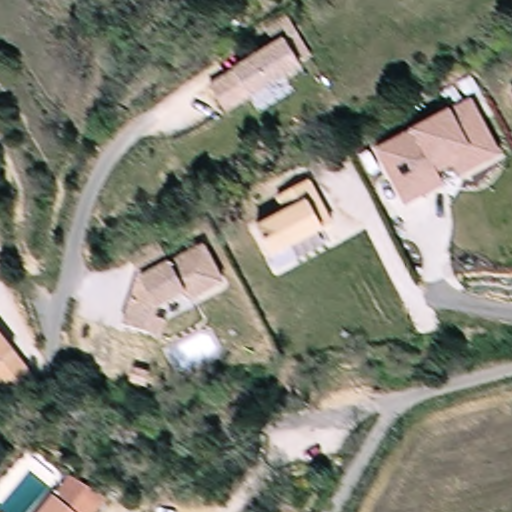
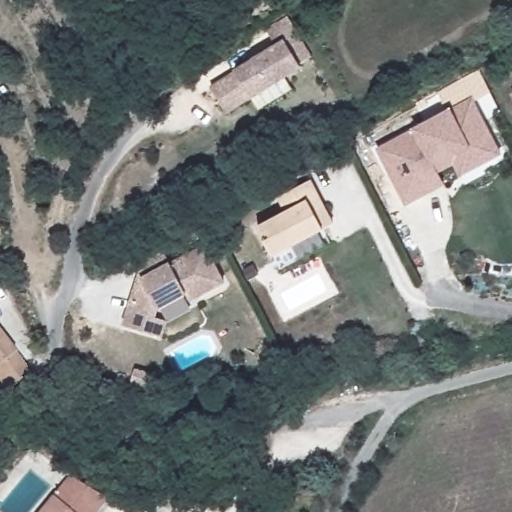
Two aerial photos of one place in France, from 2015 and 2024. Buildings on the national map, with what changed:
unchanged [(268,51),(286,41),(300,67),(285,76),(225,110),(210,84),(268,51)]
unchanged [(468,94),(500,147),(484,157),(468,142),(421,172),(427,193),(410,204),(378,151),(468,94)]
unchanged [(312,179),(336,223),(277,256),(261,228),(290,212),(282,196),(312,179)]
unchanged [(140,252),(160,240),(172,261),(177,257),(204,241),(225,278),(200,293),(192,297),(188,290),(160,307),(154,332),(127,325),(135,298),(150,289),(132,257),(140,252)]
unchanged [(37,372),(20,390),(13,398),(0,386),(0,326),(42,366),(37,372)]
unchanged [(72,480),(107,503),(100,512),(57,512),(49,507),(72,480)]
unchanged [(49,507),(57,512),(45,512),(49,507)]

